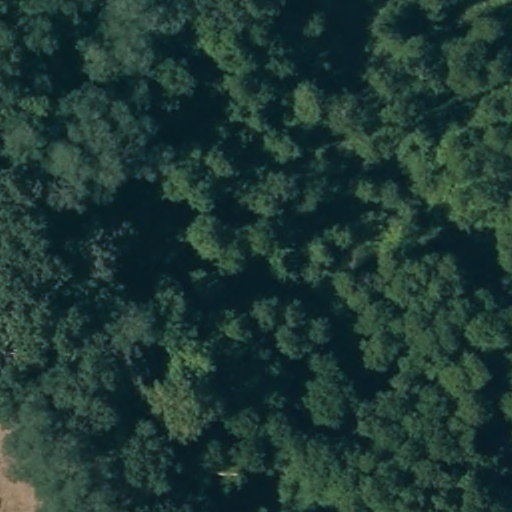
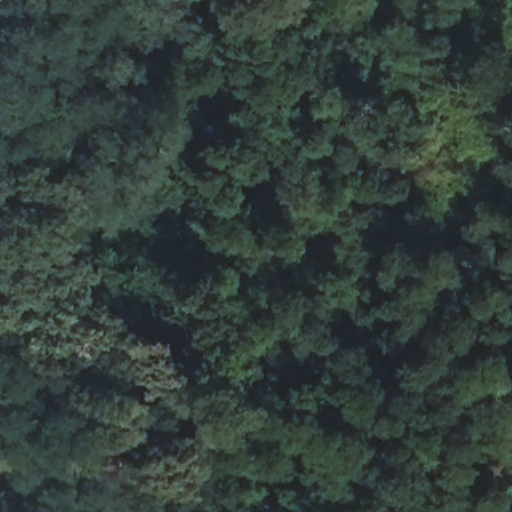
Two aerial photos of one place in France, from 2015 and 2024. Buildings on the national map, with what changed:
[]

